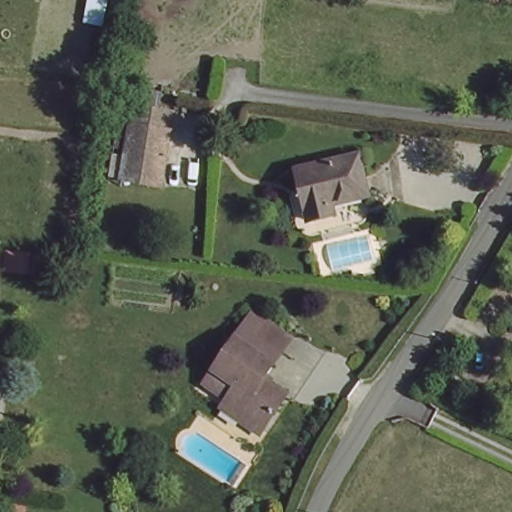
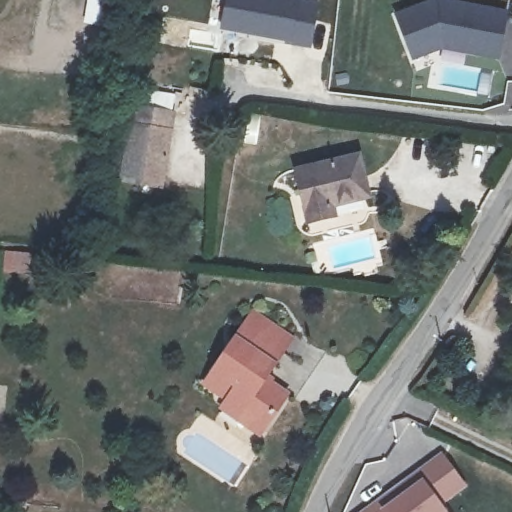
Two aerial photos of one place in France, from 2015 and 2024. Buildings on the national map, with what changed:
new [(224,0),(315,0),(320,1),(311,49),(218,30),(224,0)]
new [(409,46),(396,11),(429,0),(452,0),(493,9),(505,11),(502,26),(496,55),(465,49),(441,44),(411,54),(409,46)]
unchanged [(117,184),(127,129),(125,125),(128,105),(158,110),(177,114),(173,135),(161,191),(117,184)]
unchanged [(366,198),(332,205),(336,220),(313,225),(302,172),(358,159),(366,198)]
unchanged [(290,392),(267,427),(228,402),(230,398),(205,382),(252,310),(269,321),(292,337),(286,346),(266,377),(290,392)]
new [(466,487),(441,505),(447,512),(360,512),(442,451),(466,487)]

